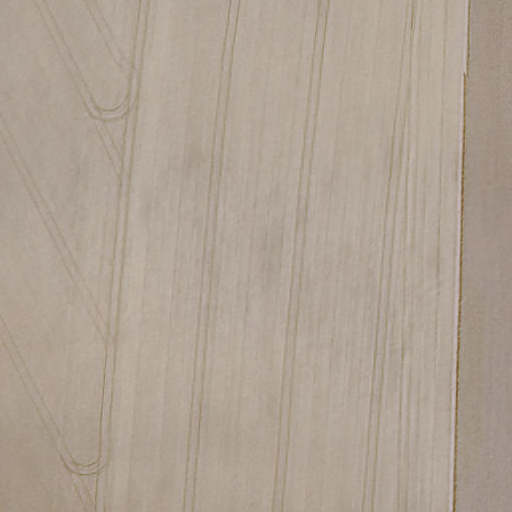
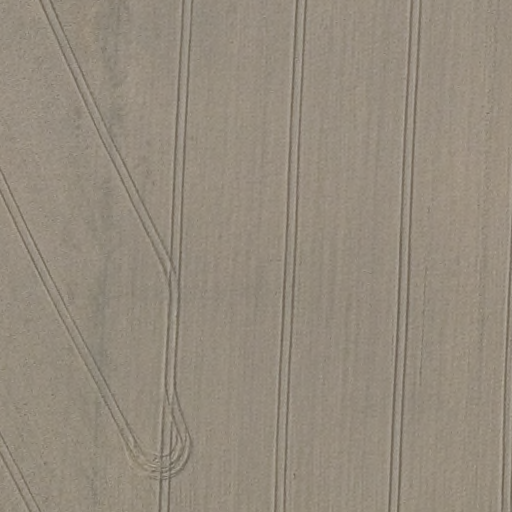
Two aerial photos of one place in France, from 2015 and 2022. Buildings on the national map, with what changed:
[]

